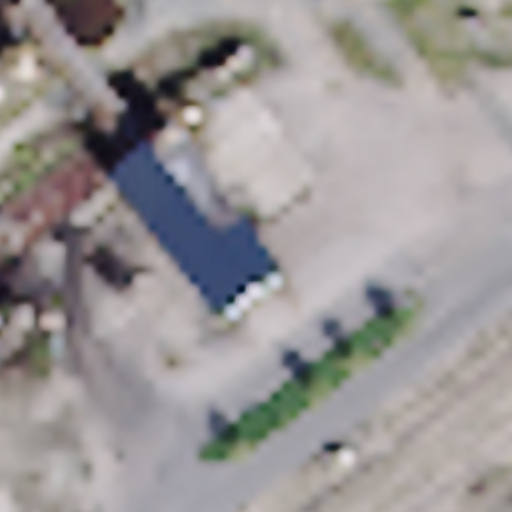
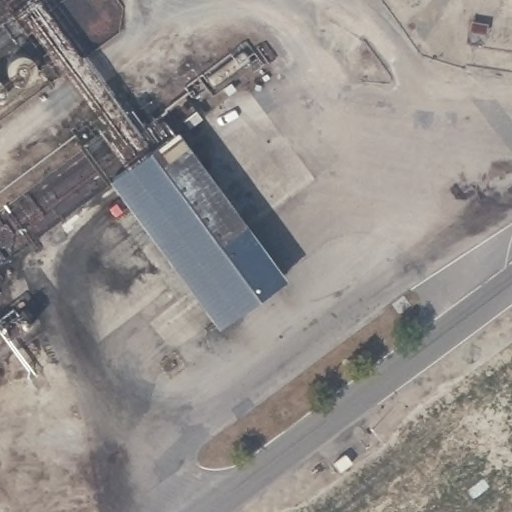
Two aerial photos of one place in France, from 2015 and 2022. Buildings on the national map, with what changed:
unchanged [(227,312),(119,168),(179,125),(286,267),(227,312)]
unchanged [(25,320),(0,338),(0,286),(25,320)]

